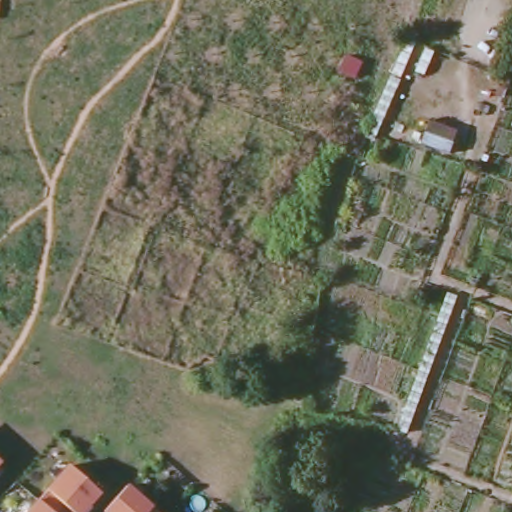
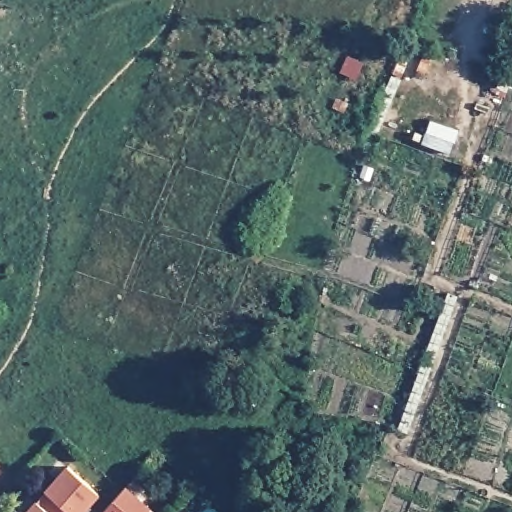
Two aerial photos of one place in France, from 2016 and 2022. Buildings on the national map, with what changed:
unchanged [(69,466),(100,493),(83,512),(50,512),(38,502),(48,491),(69,466)]
unchanged [(156,512),(104,512),(127,487),(156,512)]
unchanged [(50,512),(29,512),(38,502),(50,512)]

